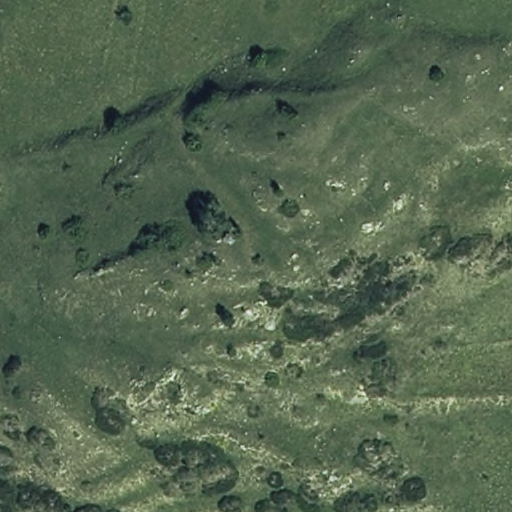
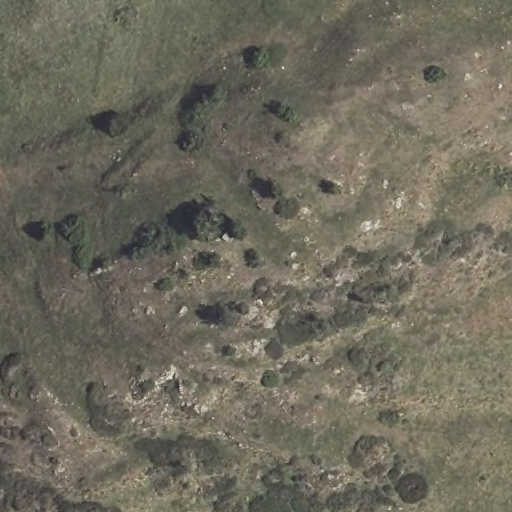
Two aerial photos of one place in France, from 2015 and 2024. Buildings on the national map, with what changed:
[]

